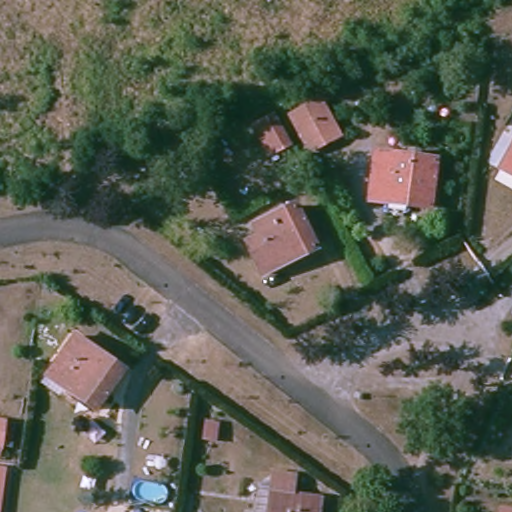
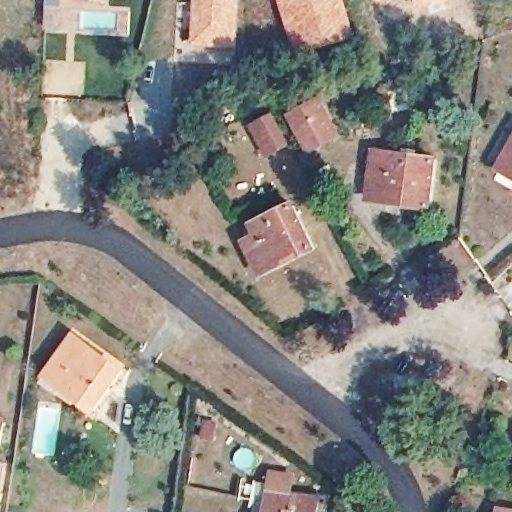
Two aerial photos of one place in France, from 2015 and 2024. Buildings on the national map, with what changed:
new [(77,1),(77,0),(109,0),(109,3),(77,1)]
new [(191,45),(193,0),(241,0),(238,48),(191,45)]
new [(297,54),(278,0),(345,0),(357,39),(297,54)]
new [(379,0),(383,0),(380,1),(379,0)]
new [(415,0),(451,0),(418,9),(415,0)]
unchanged [(318,153),(303,122),(330,107),(347,138),(318,153)]
unchanged [(255,129),(273,119),(288,149),(270,157),(255,129)]
unchanged [(370,199),(377,153),(436,163),(430,211),(407,207),(383,202),(370,199)]
unchanged [(505,172),(512,159),(512,177),(505,172)]
unchanged [(268,273),(253,241),(265,235),(258,222),(298,204),(320,246),(301,256),(283,265),(268,273)]
unchanged [(92,411),(57,385),(62,380),(51,369),(72,341),(86,351),(103,365),(117,377),(92,411)]
unchanged [(0,426),(12,427),(7,465),(0,464),(0,426)]
unchanged [(0,486),(0,477),(1,477),(0,486)]
unchanged [(260,496),(274,498),(279,477),(300,480),(298,502),(321,505),(320,512),(258,512),(260,496)]

